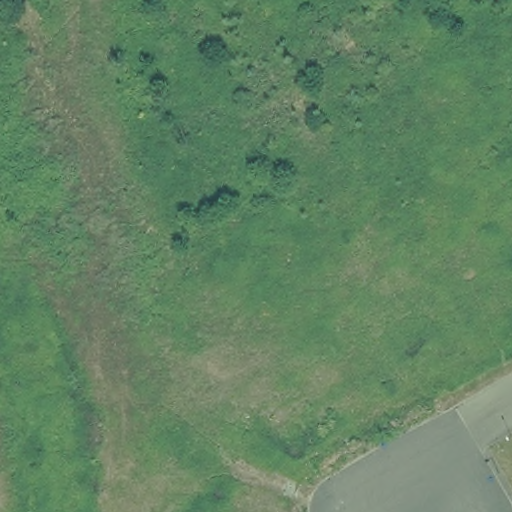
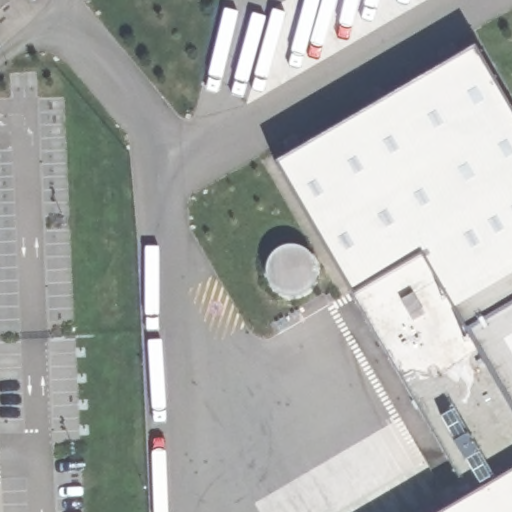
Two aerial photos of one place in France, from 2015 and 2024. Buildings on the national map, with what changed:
new [(2,48),(0,50),(0,46),(2,48)]
new [(512,112),(512,236),(421,81),(475,49),(512,112)]
new [(512,236),(512,362),(457,394),(310,146),(421,81),(512,236)]
new [(457,394),(512,490),(512,512),(495,512),(287,159),(310,146),(457,394)]
new [(495,512),(446,512),(470,498),(277,165),(287,159),(495,512)]
new [(512,490),(457,394),(512,362),(512,490)]

